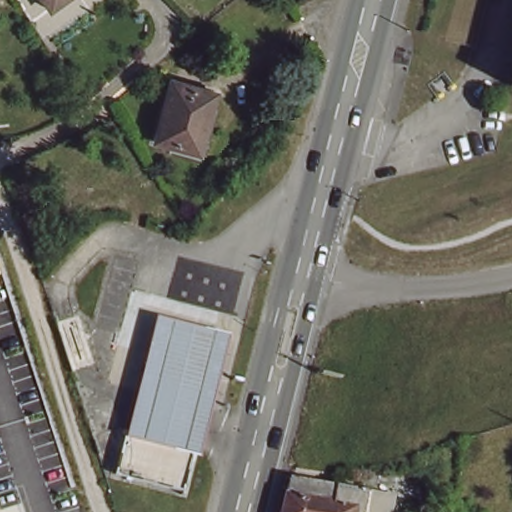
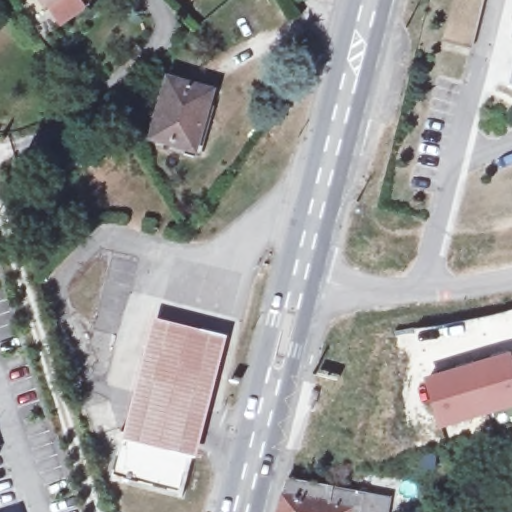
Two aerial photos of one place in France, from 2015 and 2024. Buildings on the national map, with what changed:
unchanged [(49,7),(44,0),(59,0),(49,7)]
unchanged [(512,78),(512,90),(509,90),(512,78)]
unchanged [(194,156),(154,146),(172,84),(214,95),(194,156)]
unchanged [(123,441),(152,325),(227,341),(197,459),(192,458),(123,441)]
new [(512,380),(512,407),(435,429),(423,381),(506,358),(512,380)]
unchanged [(180,500),(107,482),(119,439),(123,441),(192,458),(180,500)]
unchanged [(327,491),(322,512),(274,512),(281,484),(327,491)]
unchanged [(385,499),(383,512),(322,512),(327,491),(385,499)]

